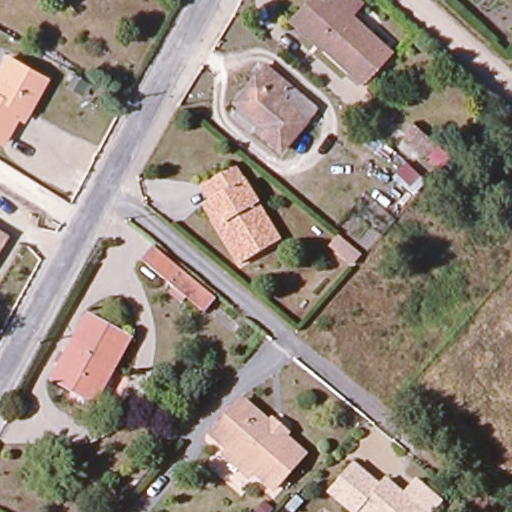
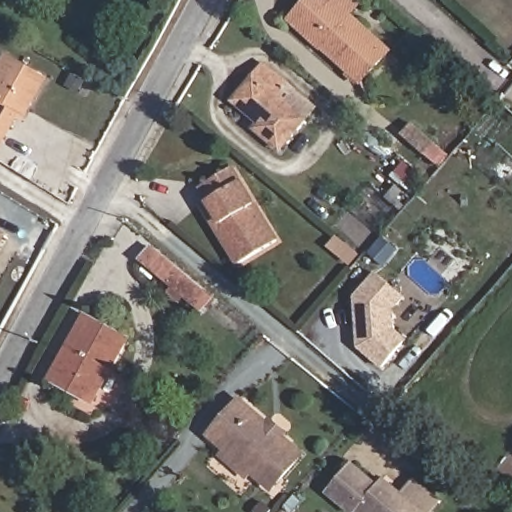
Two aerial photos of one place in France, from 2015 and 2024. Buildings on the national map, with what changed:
unchanged [(345,21),(385,58),(361,84),(299,30),(291,22),(310,0),(346,0),(356,9),(345,21)]
unchanged [(2,146),(0,145),(0,74),(8,60),(46,82),(28,116),(25,123),(18,118),(2,146)]
unchanged [(262,70),(285,88),(277,100),(305,122),(290,141),(281,154),(255,133),(259,128),(233,107),(262,70)]
unchanged [(90,88),(81,83),(86,75),(95,80),(90,88)]
unchanged [(419,134),(441,153),(432,164),(410,145),(419,134)]
unchanged [(273,245),(237,268),(213,230),(199,209),(207,204),(198,190),(203,187),(228,173),(273,245)]
unchanged [(0,242),(0,233),(4,235),(0,242)]
unchanged [(161,260),(205,295),(194,308),(151,271),(161,260)]
new [(383,370),(358,349),(354,297),(376,272),(406,298),(397,309),(396,330),(408,340),(383,370)]
unchanged [(84,405),(49,385),(85,321),(125,344),(108,375),(89,408),(84,405)]
unchanged [(241,396),(305,453),(273,491),(251,476),(247,481),(216,456),(222,449),(206,435),(241,396)]
unchanged [(352,512),(351,512),(349,512),(323,491),(347,462),(373,484),(379,477),(413,505),(422,512),(353,512),(352,512)]

